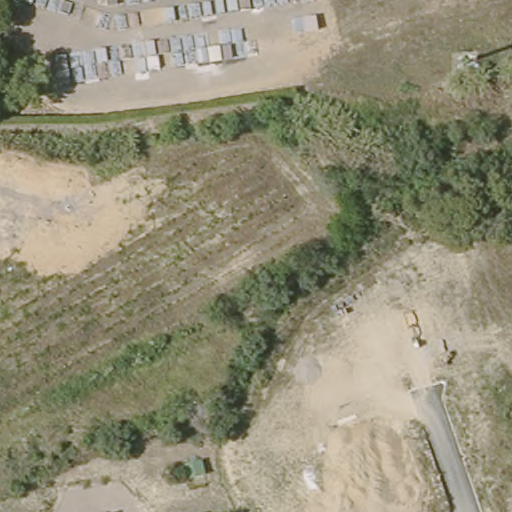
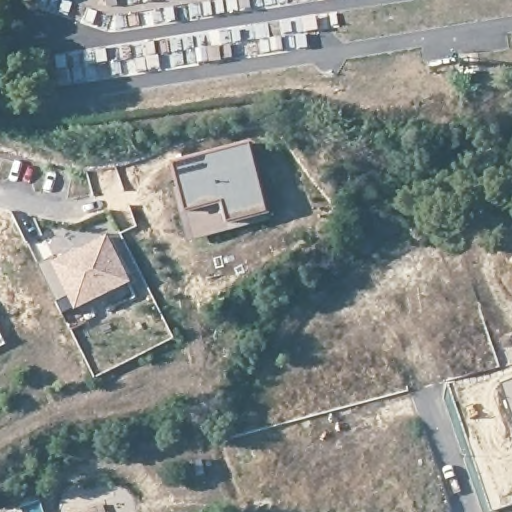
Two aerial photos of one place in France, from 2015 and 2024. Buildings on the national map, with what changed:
new [(252,144),(271,213),(195,234),(182,185),(176,165),(252,144)]
new [(182,185),(195,234),(271,213),(273,220),(190,243),(175,187),(182,185)]
new [(54,257),(57,262),(107,236),(130,281),(79,307),(72,295),(58,303),(40,265),(54,257)]
new [(512,399),(507,386),(512,384),(512,399)]

